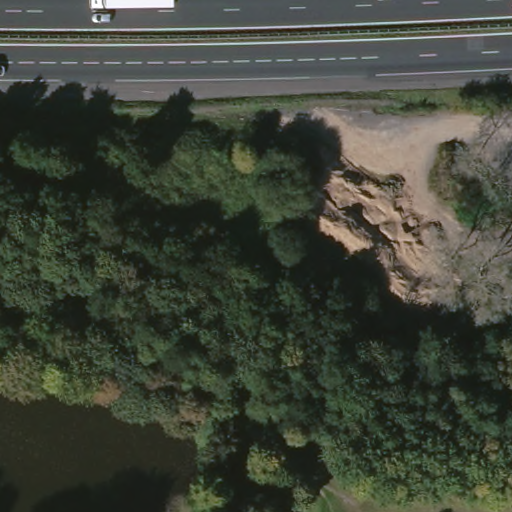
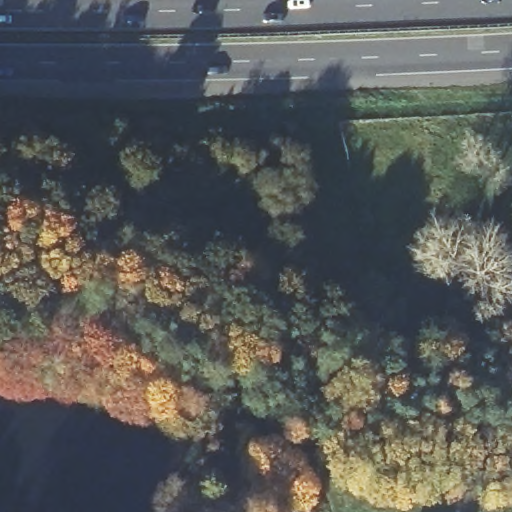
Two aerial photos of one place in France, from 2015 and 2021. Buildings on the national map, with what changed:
unchanged [(450,415),(398,417),(405,412),(450,415)]

